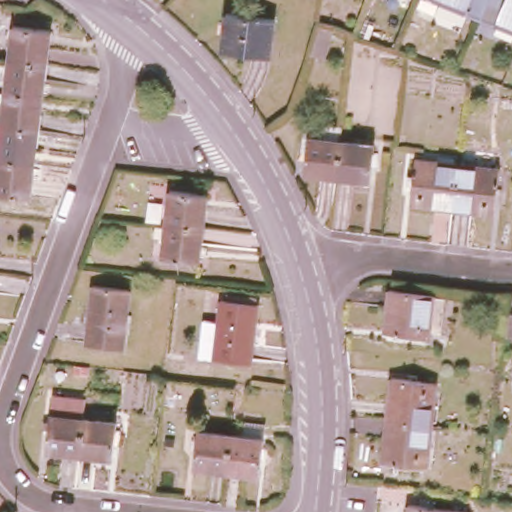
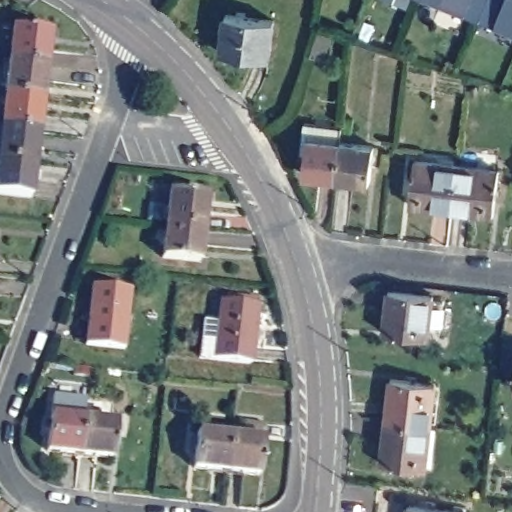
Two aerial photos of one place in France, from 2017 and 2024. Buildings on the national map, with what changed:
unchanged [(482,20),(429,0),(490,0),(482,20)]
unchanged [(482,20),(490,0),(512,0),(512,32),(482,20)]
unchanged [(274,17),(272,56),(223,52),(225,15),(274,17)]
unchanged [(17,23),(55,28),(51,61),(13,56),(17,23)]
unchanged [(47,94),(9,90),(13,56),(51,61),(47,94)]
unchanged [(42,127),(5,123),(9,90),(47,94),(42,127)]
unchanged [(38,161),(1,157),(5,123),(42,127),(38,161)]
unchanged [(307,175),(311,153),(305,151),(308,123),(347,127),(345,141),(341,179),(307,175)]
unchanged [(379,145),(374,182),(341,179),(345,141),(379,145)]
unchanged [(495,215),(452,210),(457,165),(459,165),(461,150),(497,155),(496,170),(500,170),(495,215)]
unchanged [(0,191),(0,161),(1,157),(38,161),(34,194),(0,191)]
unchanged [(409,205),(414,160),(457,165),(452,210),(409,205)]
unchanged [(175,191),(211,196),(207,229),(171,225),(175,191)]
unchanged [(202,262),(167,258),(171,225),(207,229),(202,262)]
unchanged [(0,239),(0,234),(1,235),(0,239)]
unchanged [(97,287),(134,291),(127,350),(89,345),(97,287)]
unchanged [(203,358),(208,322),(223,323),(226,301),(234,301),(235,287),(264,290),(262,305),(255,365),(203,358)]
unchanged [(438,295),(433,337),(389,333),(394,290),(438,295)]
unchanged [(396,379),(441,385),(436,426),(391,421),(396,379)]
unchanged [(115,460),(83,456),(51,452),(56,415),(58,395),(90,400),(87,420),(120,424),(115,460)]
unchanged [(431,468),(386,462),(391,421),(436,426),(431,468)]
unchanged [(197,468),(202,432),(236,436),(231,471),(197,468)]
unchanged [(280,477),(264,475),(231,471),(236,436),(267,440),(266,455),(282,457),(280,477)]
unchanged [(457,512),(407,512),(407,506),(452,511),(457,512)]

